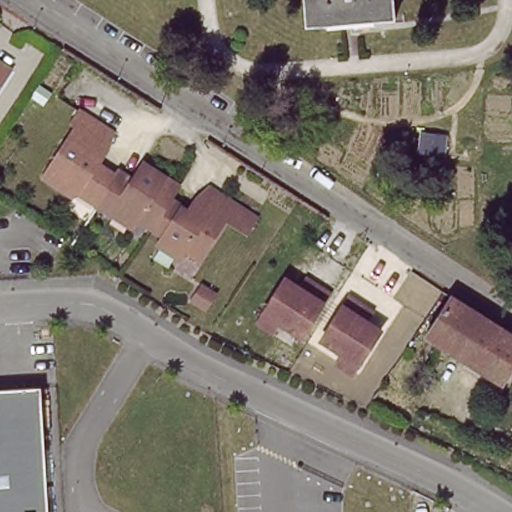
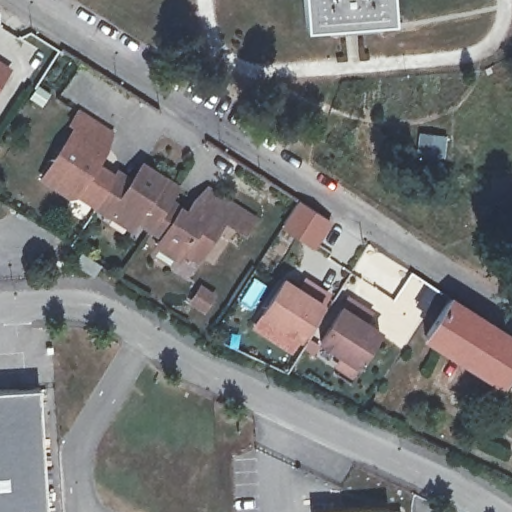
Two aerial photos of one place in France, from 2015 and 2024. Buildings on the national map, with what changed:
unchanged [(390,19),(302,25),(300,0),(389,0),(390,19)]
unchanged [(13,70),(0,87),(0,60),(13,70)]
unchanged [(93,161),(112,174),(113,171),(127,180),(137,165),(172,188),(163,202),(181,215),(190,201),(194,203),(203,190),(249,221),(239,235),(219,221),(192,261),(178,252),(173,260),(152,246),(157,238),(144,229),(131,220),(125,229),(91,205),(94,201),(83,194),(68,195),(39,175),(71,126),(66,124),(75,110),(96,124),(106,131),(98,144),(102,147),(93,161)]
new [(316,249),(282,227),(299,200),(333,222),(316,249)]
unchanged [(281,336),(286,328),(264,315),(285,281),(300,290),(305,281),(315,287),(329,296),(302,338),(297,346),(281,336)]
unchanged [(512,365),(498,387),(424,340),(451,300),(451,299),(512,338),(512,365)]
unchanged [(333,363),(338,355),(316,341),(343,300),(357,308),(366,315),(360,323),(374,332),(353,365),(348,373),(333,363)]
unchanged [(46,512),(0,512),(0,389),(39,387),(46,512)]

